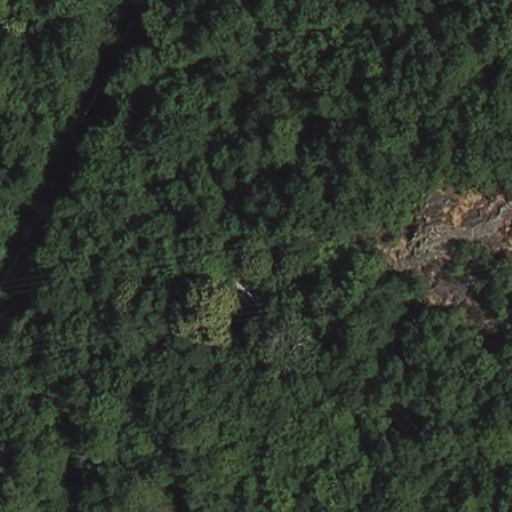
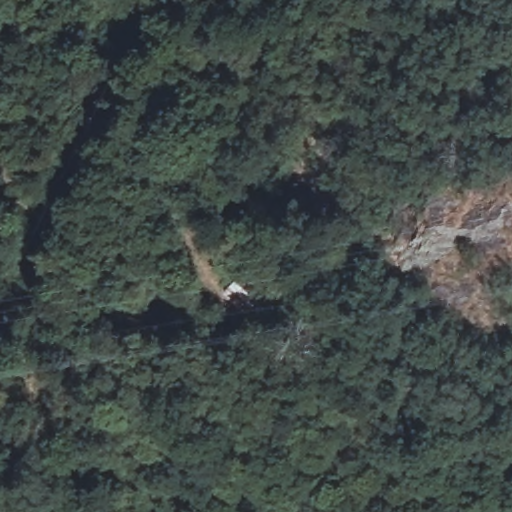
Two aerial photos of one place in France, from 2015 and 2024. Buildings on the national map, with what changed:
unchanged [(276,320),(250,292),(272,271),(300,298),(276,320)]

